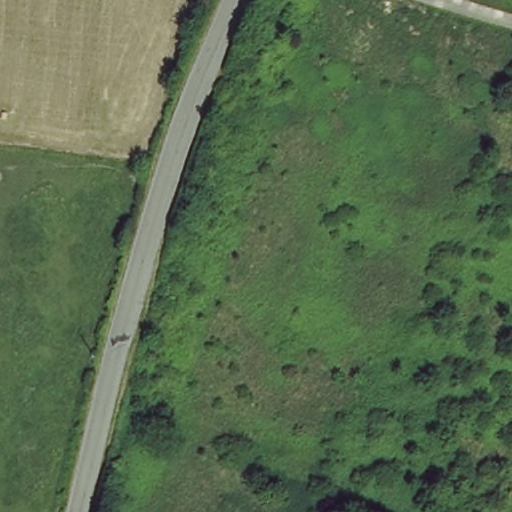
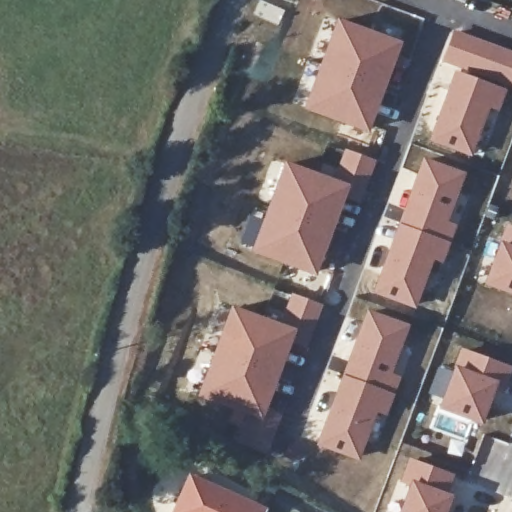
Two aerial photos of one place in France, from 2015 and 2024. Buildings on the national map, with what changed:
new [(335,18),(402,41),(367,134),(302,109),(335,18)]
new [(451,29),(512,50),(512,90),(507,89),(452,68),(439,63),(451,29)]
new [(452,68),(507,89),(497,113),(490,110),(473,157),(427,140),(452,68)]
new [(343,148),(376,160),(359,204),(345,198),(349,185),(331,176),(343,148)]
new [(421,156),(465,171),(448,220),(457,224),(442,263),(432,260),(416,308),(372,292),(421,156)]
new [(250,213),(261,217),(282,160),(331,176),(349,185),(345,198),(315,276),(249,252),(250,249),(238,244),(250,213)]
new [(505,223),(512,225),(512,245),(499,240),(505,223)]
new [(499,240),(512,245),(512,296),(482,285),(499,240)]
new [(291,292),(323,303),(311,336),(298,331),(279,321),(291,292)]
new [(230,305),(279,321),(298,331),(263,423),(268,425),(263,438),(266,440),(272,430),(275,431),(268,451),(249,443),(254,431),(235,424),(238,417),(194,400),(230,305)]
new [(365,308),(410,323),(392,372),(400,375),(386,416),(377,413),(360,460),(315,445),(365,308)]
new [(460,346),(512,365),(512,368),(505,384),(498,381),(452,364),(460,346)]
new [(452,364),(498,381),(482,425),(437,408),(452,364)]
new [(408,457),(455,474),(449,492),(408,480),(406,485),(399,482),(408,457)]
new [(268,507),(266,512),(169,512),(188,470),(268,507)]
new [(408,480),(449,492),(453,493),(447,512),(397,512),(406,485),(408,480)]

